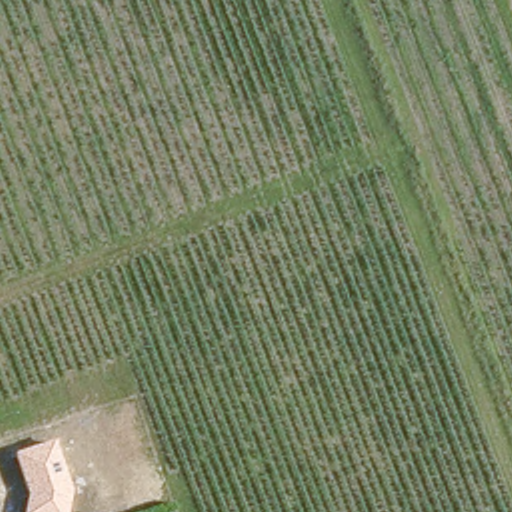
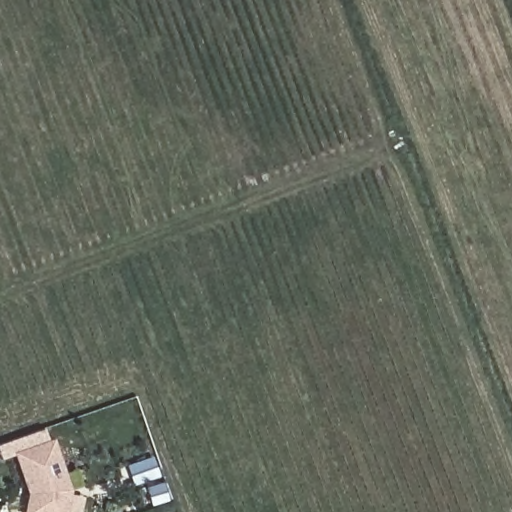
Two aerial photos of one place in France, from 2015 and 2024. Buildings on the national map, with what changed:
unchanged [(66,512),(22,512),(27,488),(13,452),(53,438),(71,490),(66,512)]

